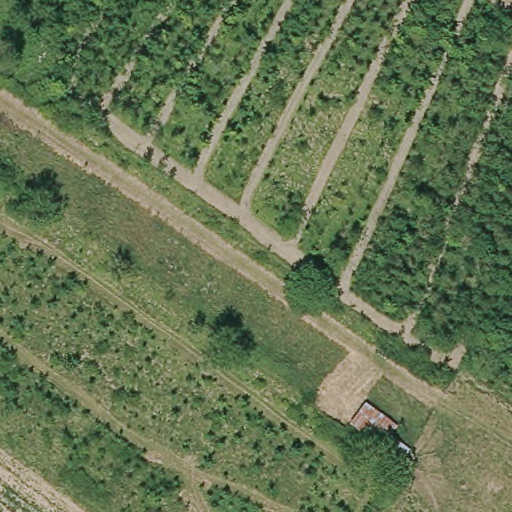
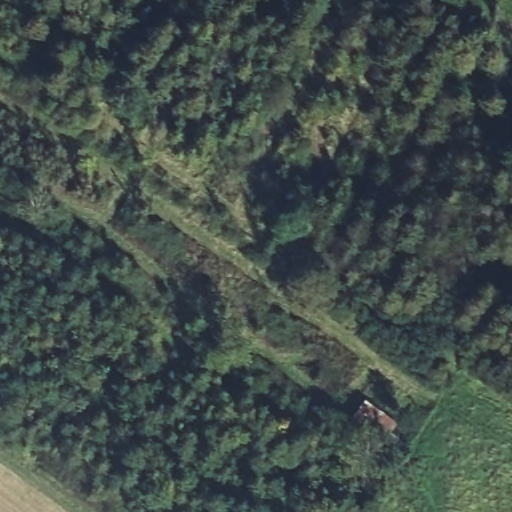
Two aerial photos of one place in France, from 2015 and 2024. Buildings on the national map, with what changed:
unchanged [(345,428),(355,414),(392,445),(384,458),(345,428)]

